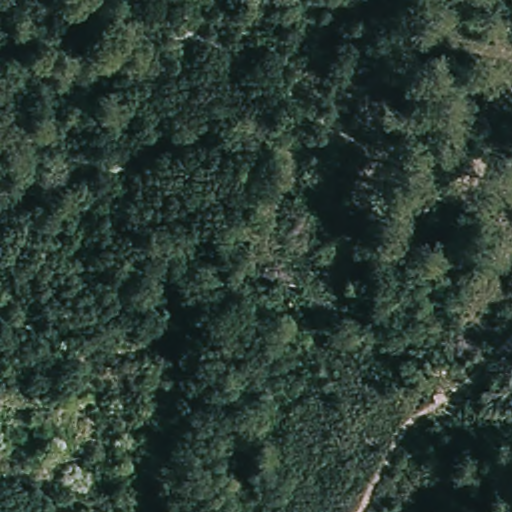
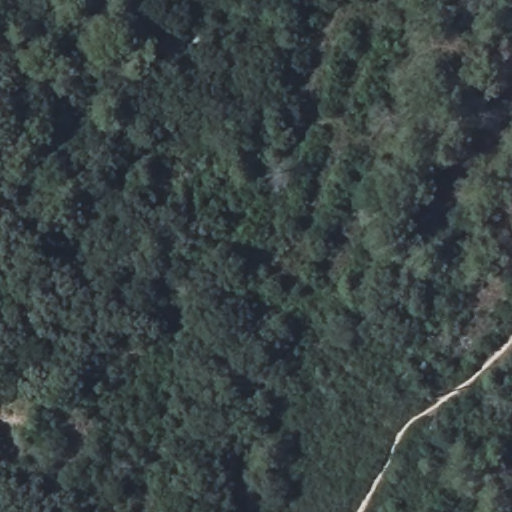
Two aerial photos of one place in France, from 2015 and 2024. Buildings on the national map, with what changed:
[]

